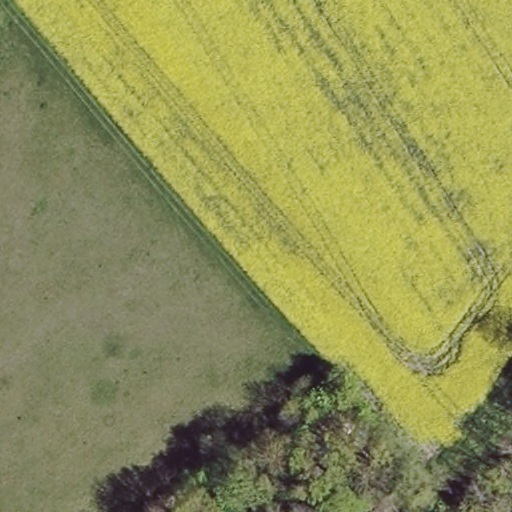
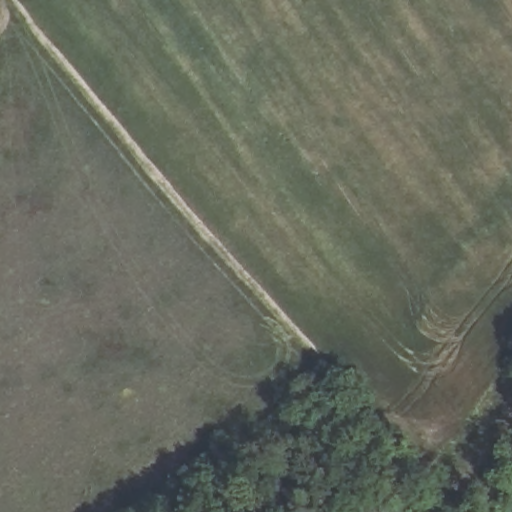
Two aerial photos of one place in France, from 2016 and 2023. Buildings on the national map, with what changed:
unchanged [(388,512),(372,512),(382,505),(388,512)]

